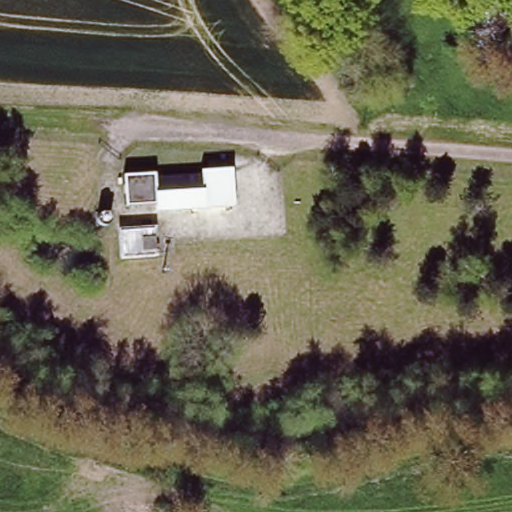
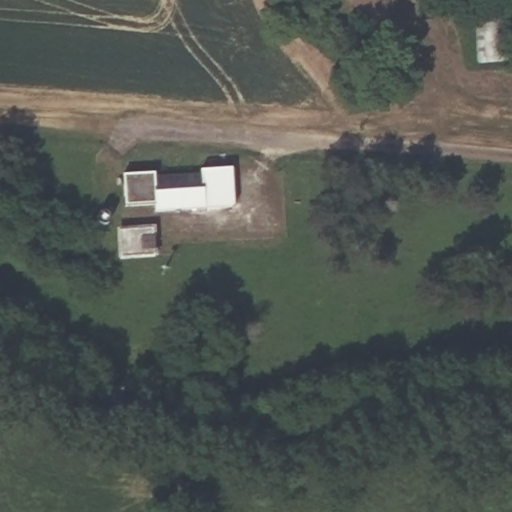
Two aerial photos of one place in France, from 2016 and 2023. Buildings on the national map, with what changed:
unchanged [(131,211),(131,201),(123,201),(120,171),(152,170),(153,176),(197,174),(197,166),(230,165),(232,204),(204,205),(203,211),(196,211),(196,205),(155,207),(155,200),(150,200),(150,211),(131,211)]
unchanged [(151,227),(153,254),(119,256),(117,230),(151,227)]

